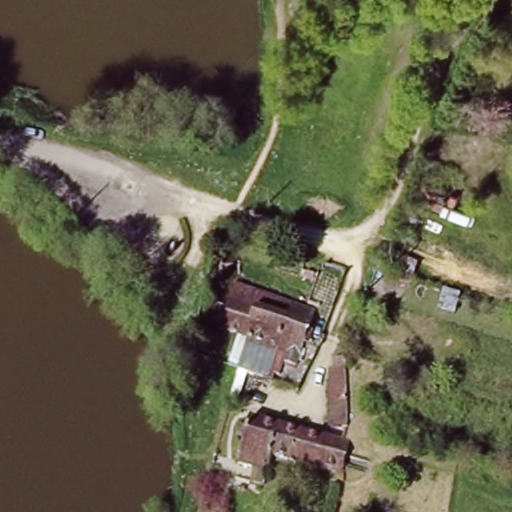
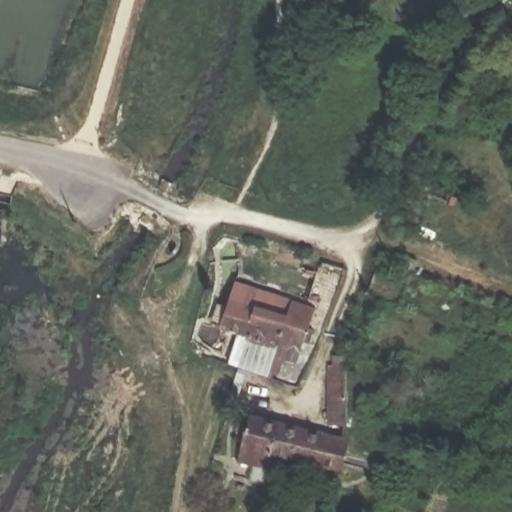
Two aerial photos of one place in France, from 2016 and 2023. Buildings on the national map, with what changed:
unchanged [(315,273),(323,276),(314,302),(306,299),(315,273)]
unchanged [(233,283),(312,309),(294,364),(281,360),(284,349),(221,329),(233,283)]
unchanged [(329,422),(329,415),(329,364),(334,364),(334,350),(349,350),(349,365),(347,410),(346,418),(346,427),(329,422)]
unchanged [(274,451),(270,463),(241,457),(246,432),(243,432),(241,431),(239,428),(238,426),(238,423),(240,421),(242,419),(244,418),(247,418),(249,420),(251,412),(346,437),(351,438),(343,469),(274,451)]

